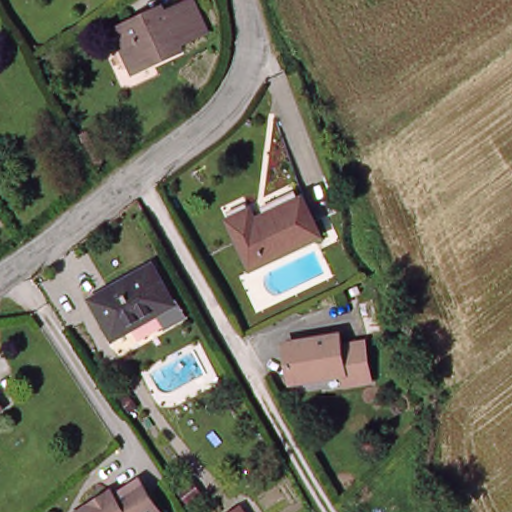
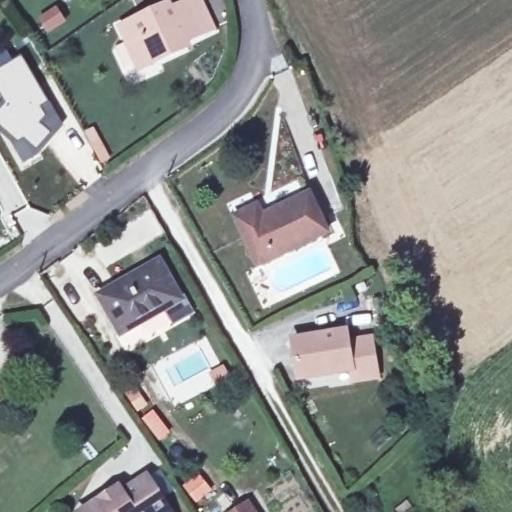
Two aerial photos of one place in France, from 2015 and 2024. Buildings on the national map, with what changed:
unchanged [(137,71),(116,28),(164,3),(169,10),(184,2),(188,0),(198,0),(211,27),(199,32),(176,44),(180,51),(137,71)]
new [(0,126),(0,108),(6,102),(0,93),(0,68),(24,55),(49,102),(41,107),(46,117),(40,123),(51,134),(36,151),(28,159),(17,142),(0,126)]
unchanged [(327,227),(257,264),(231,216),(249,207),(257,221),(271,215),(268,210),(307,187),(327,227)]
unchanged [(178,296),(119,331),(98,297),(157,262),(178,296)]
unchanged [(349,337),(372,333),(379,368),(356,373),(353,365),(301,374),(295,338),(347,329),(349,337)]
unchanged [(0,405),(0,399),(2,402),(0,405)]
unchanged [(166,505),(171,512),(77,512),(88,505),(92,509),(145,473),(166,505)]
unchanged [(231,498),(240,512),(211,512),(231,498)]

